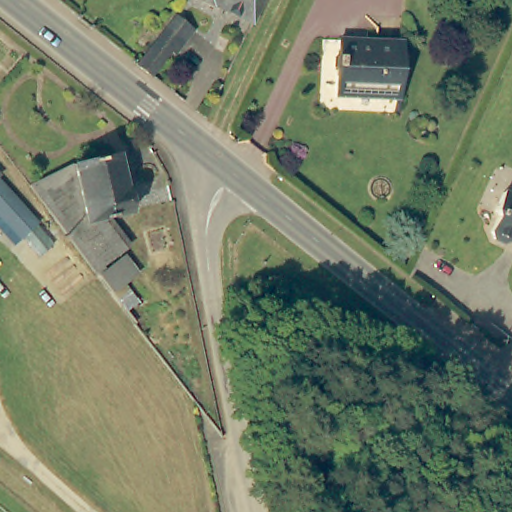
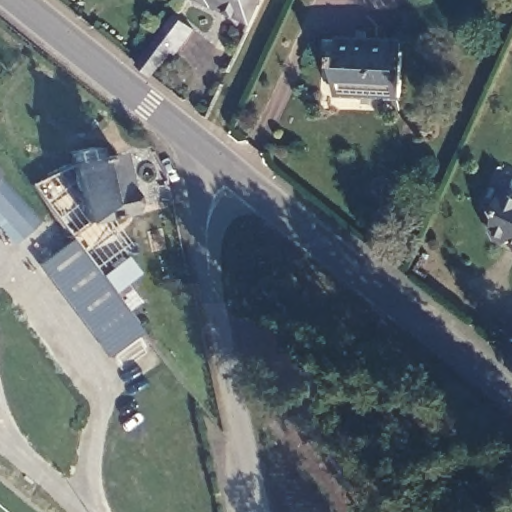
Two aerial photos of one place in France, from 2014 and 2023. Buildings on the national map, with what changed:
unchanged [(219,2),(217,4),(209,0),(264,0),(255,20),(219,2)]
unchanged [(144,57),(157,37),(168,21),(187,35),(181,44),(175,40),(170,46),(156,67),(144,57)]
unchanged [(337,62),(335,62),(335,50),(337,50),(338,36),(402,37),(401,91),(337,90),(337,62)]
unchanged [(125,247),(95,269),(32,186),(75,164),(117,152),(131,206),(100,217),(125,247)]
unchanged [(495,235),(485,230),(484,221),(489,210),(487,205),(497,184),(512,192),(512,239),(498,232),(495,235)]
unchanged [(0,231),(0,185),(35,225),(25,234),(13,245),(0,231)]
new [(126,311),(142,331),(107,357),(38,265),(72,239),(95,269),(99,274),(109,288),(122,278),(138,302),(126,311)]
unchanged [(99,274),(126,253),(136,267),(109,288),(99,274)]

